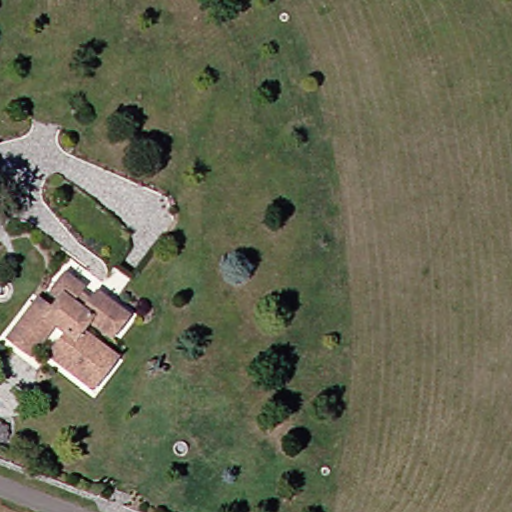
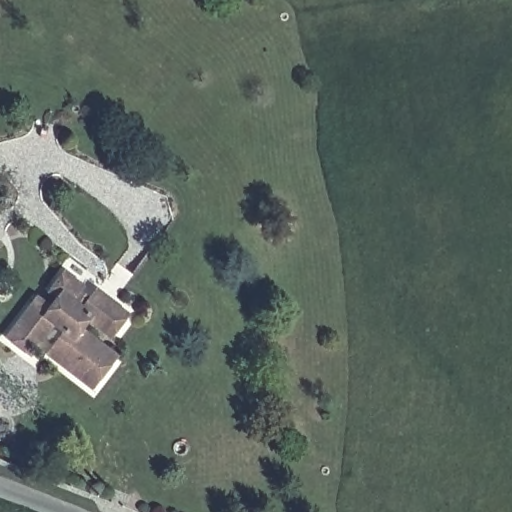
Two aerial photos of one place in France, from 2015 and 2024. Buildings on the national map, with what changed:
unchanged [(89,298),(93,292),(121,312),(104,338),(84,324),(78,331),(109,355),(84,389),(44,357),(60,332),(49,324),(25,357),(2,339),(31,300),(42,308),(47,299),(40,294),(58,271),(89,298)]

